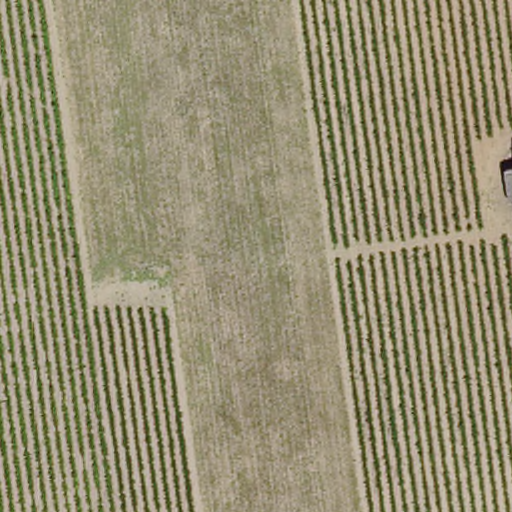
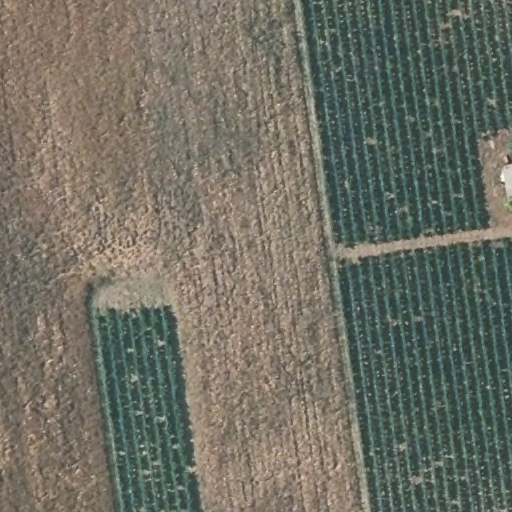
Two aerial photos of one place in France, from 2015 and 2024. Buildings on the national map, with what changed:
unchanged [(512,174),(512,209),(509,210),(503,175),(512,174)]

